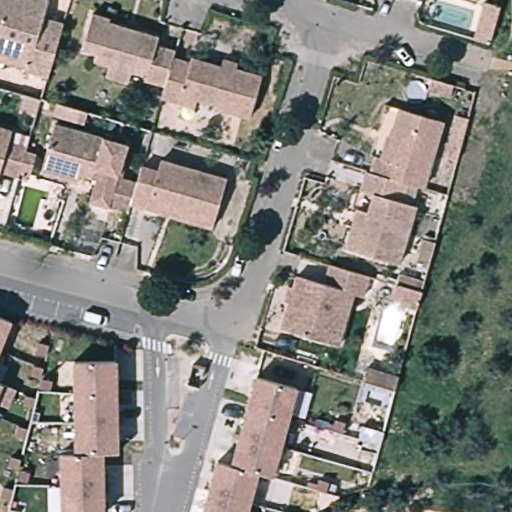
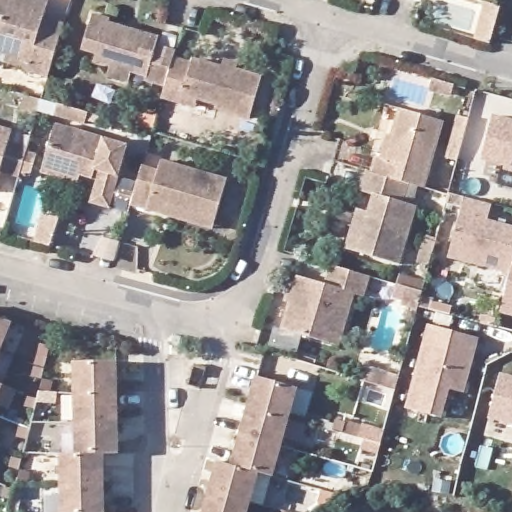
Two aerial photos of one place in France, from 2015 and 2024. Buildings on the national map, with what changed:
unchanged [(52,2),(47,21),(67,26),(63,38),(52,78),(30,72),(32,68),(0,59),(0,3),(1,0),(47,0),(52,2)]
unchanged [(476,38),(484,6),(496,10),(488,41),(476,38)]
unchanged [(113,80),(116,66),(100,61),(101,54),(88,50),(98,15),(114,20),(113,23),(163,38),(161,45),(181,51),(178,61),(169,90),(149,84),(151,80),(135,75),(132,86),(113,80)]
unchanged [(184,107),(166,102),(169,90),(178,61),(196,66),(196,63),(225,71),(228,64),(239,68),(238,74),(266,82),(253,121),(218,112),(218,108),(201,103),(199,111),(184,107)]
unchanged [(454,72),(451,83),(429,77),(433,66),(454,72)]
unchanged [(469,105),(466,120),(458,147),(448,144),(459,102),(469,105)]
unchanged [(381,161),(391,163),(406,111),(448,123),(429,190),(412,185),(377,175),(381,161)]
new [(512,120),(512,173),(504,171),(504,167),(480,161),(492,114),(512,120)]
unchanged [(136,204),(134,208),(133,213),(115,208),(98,203),(104,181),(87,175),(84,184),(48,174),(50,164),(62,125),(134,146),(122,186),(139,191),(146,166),(161,170),(165,159),(230,177),(218,218),(216,227),(168,213),(136,204)]
unchanged [(33,146),(23,179),(5,175),(4,177),(0,190),(0,126),(35,136),(33,146)]
unchanged [(363,212),(373,215),(379,198),(365,194),(371,173),(377,175),(412,185),(407,204),(419,208),(403,267),(362,255),(351,252),(363,212)]
new [(447,257),(464,198),(491,205),(488,221),(512,226),(512,259),(509,272),(447,257)]
new [(512,259),(512,316),(500,314),(509,272),(512,259)]
unchanged [(334,345),(287,331),(302,278),(329,286),(334,267),(374,278),(369,297),(361,295),(344,348),(334,345)]
unchanged [(3,349),(0,348),(0,314),(14,320),(3,349)]
new [(428,326),(478,338),(464,391),(449,388),(441,417),(405,408),(428,326)]
unchanged [(0,355),(0,348),(3,349),(0,355)]
unchanged [(116,358),(118,389),(76,391),(74,361),(116,358)]
unchanged [(362,384),(366,369),(396,377),(392,391),(362,384)]
new [(498,373),(512,377),(512,423),(487,417),(498,373)]
unchanged [(253,377),(294,386),(287,416),(246,407),(253,377)]
unchanged [(0,395),(0,381),(5,383),(0,395)]
unchanged [(118,389),(120,419),(78,422),(76,391),(118,389)]
unchanged [(280,446),(239,437),(246,407),(287,416),(280,446)]
unchanged [(78,422),(120,419),(122,450),(107,451),(80,453),(78,422)]
unchanged [(239,437),(280,446),(273,476),(258,473),(232,466),(239,437)]
unchanged [(65,454),(80,453),(107,451),(109,482),(67,485),(65,454)]
unchanged [(232,466),(258,473),(251,503),(210,493),(217,463),(232,466)]
unchanged [(111,512),(69,512),(67,485),(109,482),(111,512)]
unchanged [(251,503),(249,512),(206,512),(210,493),(251,503)]

